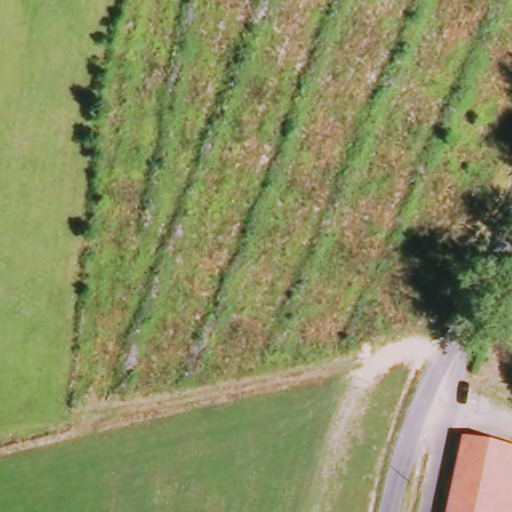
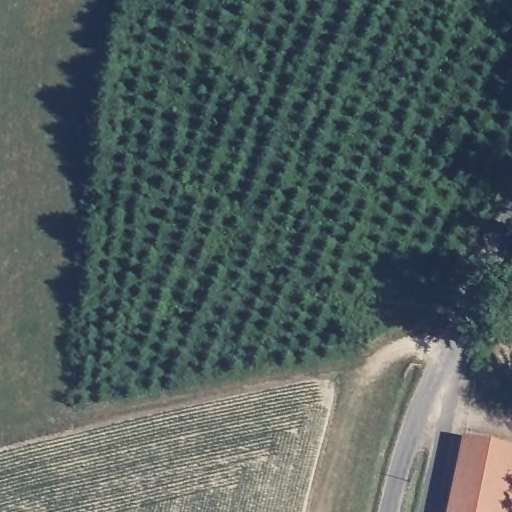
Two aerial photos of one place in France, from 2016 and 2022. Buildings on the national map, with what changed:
unchanged [(460,435),(512,448),(512,512),(441,512),(460,435)]

